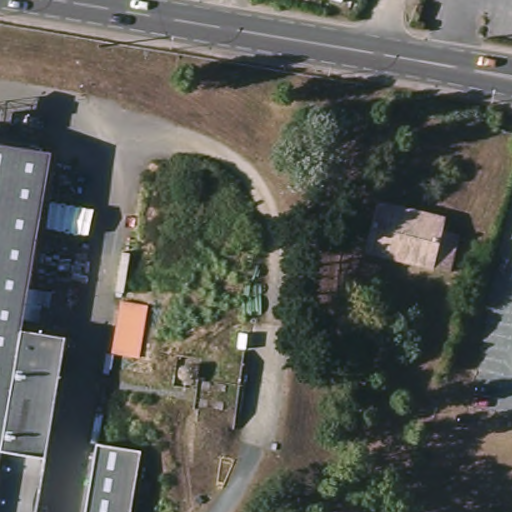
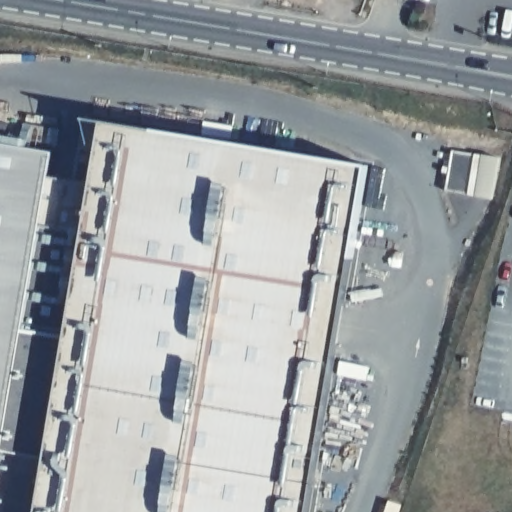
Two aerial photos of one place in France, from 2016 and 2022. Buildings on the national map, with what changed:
new [(178,411),(60,394),(70,334),(26,326),(52,177),(93,184),(103,123),(366,167),(309,512),(163,512),(178,411)]
unchanged [(57,149),(26,326),(70,334),(50,453),(40,512),(0,512),(0,140),(57,149)]
demolished [(445,218),(442,231),(461,235),(452,271),(365,251),(377,201),(445,218)]
unchanged [(141,452),(130,512),(86,512),(97,444),(141,452)]
demolished [(360,504),(364,512),(341,512),(360,504)]

